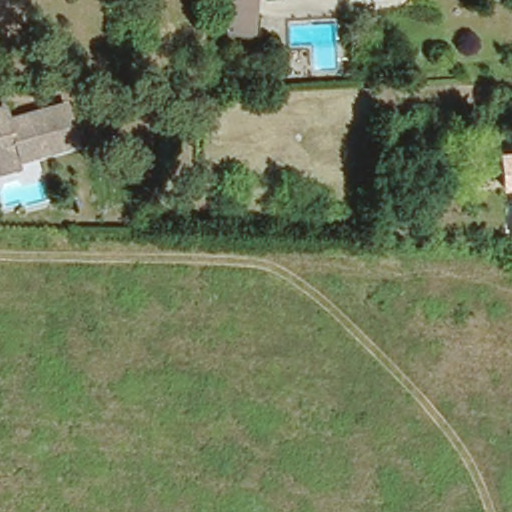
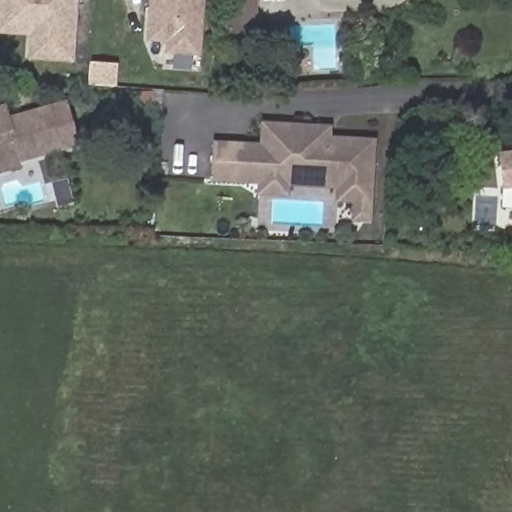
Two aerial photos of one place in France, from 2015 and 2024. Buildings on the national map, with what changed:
new [(29,57),(31,33),(0,35),(0,0),(78,0),(75,57),(29,57)]
new [(154,0),(205,0),(202,53),(169,51),(170,40),(152,39),(153,22),(154,13),(154,0)]
unchanged [(233,0),(258,0),(256,37),(231,34),(219,33),(221,8),(232,9),(233,0)]
unchanged [(155,99),(147,99),(128,98),(129,81),(140,81),(149,82),(157,82),(155,99)]
unchanged [(0,111),(2,116),(4,123),(61,107),(72,147),(15,164),(15,167),(0,171),(0,111)]
new [(330,136),(374,138),(369,222),(351,221),(351,202),(333,202),(333,187),(287,187),(287,196),(255,195),(256,184),(209,181),(211,140),(257,143),(260,121),(331,124),(330,136)]
unchanged [(509,240),(512,201),(512,240),(509,240)]

